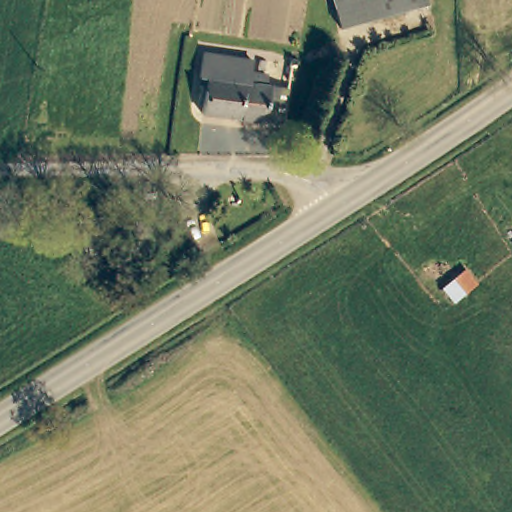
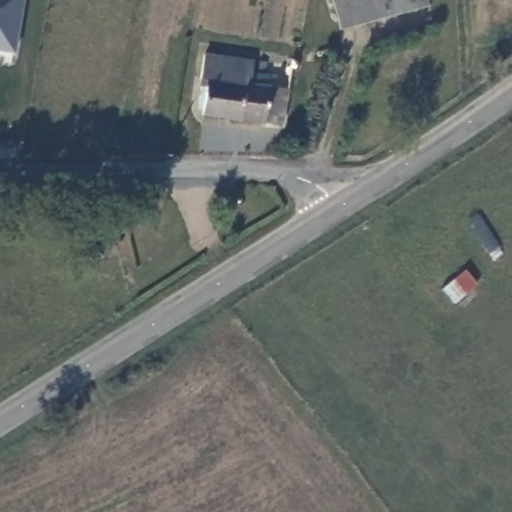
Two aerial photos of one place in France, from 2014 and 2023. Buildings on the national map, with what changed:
new [(13,54),(0,51),(0,0),(23,0),(13,54)]
unchanged [(430,4),(347,29),(338,0),(429,0),(430,4)]
unchanged [(242,120),(205,114),(211,79),(204,78),(208,55),(252,63),(250,72),(242,120)]
unchanged [(266,123),(242,120),(250,72),(260,74),(259,81),(273,87),(290,90),(284,126),(266,123)]

